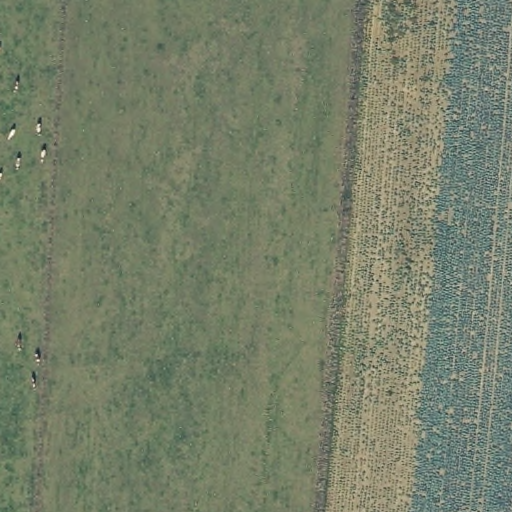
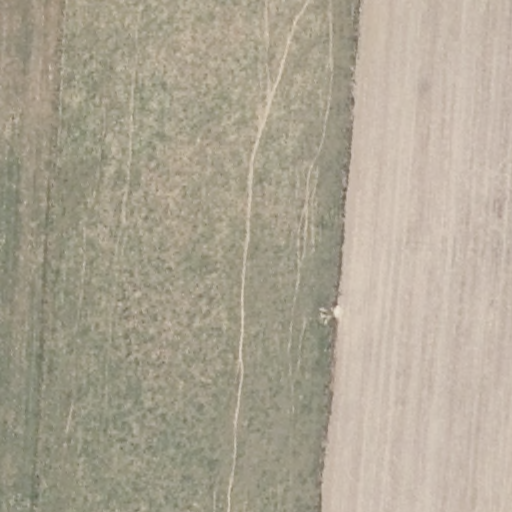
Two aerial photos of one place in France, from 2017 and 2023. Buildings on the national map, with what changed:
[]

